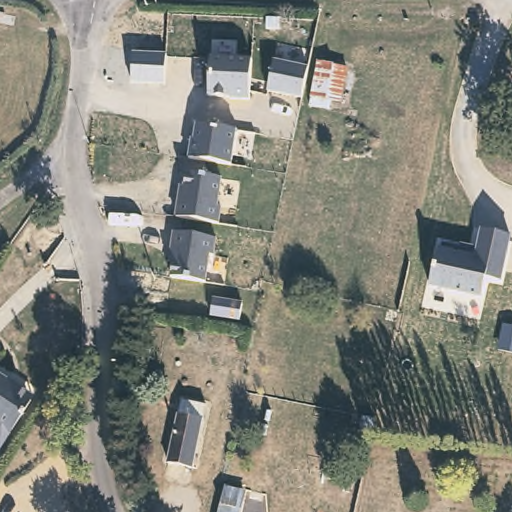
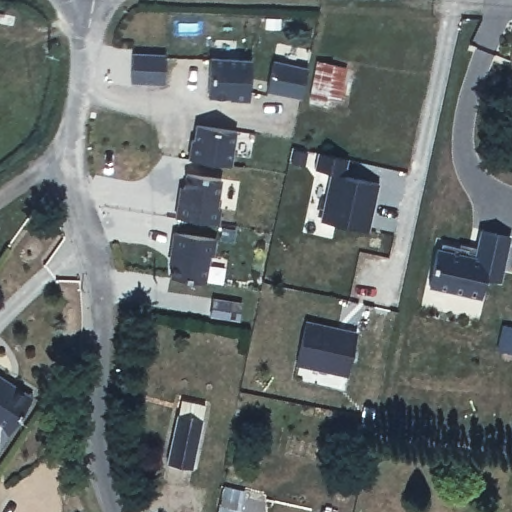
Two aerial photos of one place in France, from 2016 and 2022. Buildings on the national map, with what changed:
unchanged [(130,81),(133,55),(166,56),(165,84),(130,81)]
unchanged [(207,95),(211,59),(252,61),(249,99),(207,95)]
unchanged [(266,89),(273,59),(311,66),(302,97),(266,89)]
unchanged [(340,63),(332,99),(320,97),(328,61),(340,63)]
unchanged [(197,122),(239,130),(233,165),(189,159),(197,122)]
new [(320,221),(331,172),(314,168),(318,151),(348,157),(345,174),(379,182),(368,231),(320,221)]
unchanged [(177,200),(181,200),(186,173),(220,179),(215,206),(219,207),(216,224),(175,217),(177,200)]
unchanged [(476,255),(481,230),(510,235),(501,281),(487,278),(482,298),(431,288),(438,246),(476,255)]
unchanged [(214,237),(211,254),(207,254),(202,281),(169,275),(173,248),(170,248),(172,231),(214,237)]
unchanged [(211,297),(240,302),(237,319),(208,314),(211,297)]
new [(348,376),(296,365),(306,319),(357,331),(348,376)]
unchanged [(0,426),(0,374),(5,377),(37,398),(35,402),(13,434),(0,426)]
unchanged [(204,403),(191,466),(166,461),(179,398),(204,403)]
unchanged [(243,502),(241,512),(219,512),(222,497),(243,502)]

